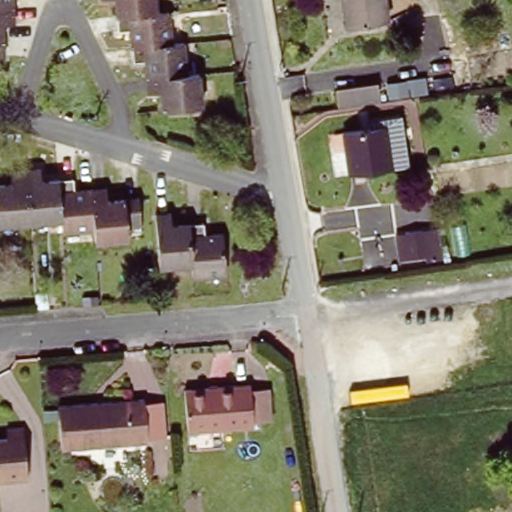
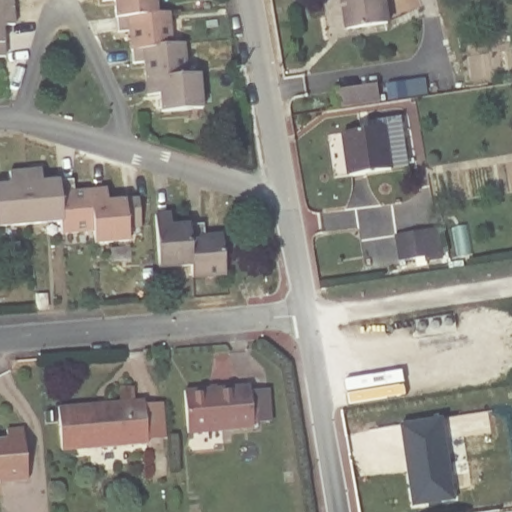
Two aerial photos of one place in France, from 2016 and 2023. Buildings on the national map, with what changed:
unchanged [(18,22),(7,22),(8,53),(0,54),(0,0),(18,0),(18,22)]
unchanged [(157,10),(167,9),(171,41),(182,40),(186,72),(197,71),(201,105),(160,109),(157,90),(144,89),(141,59),(127,59),(125,30),(115,28),(112,0),(156,0),(157,10)]
unchanged [(382,26),(345,30),(340,0),(378,0),(382,26)]
unchanged [(376,84),(379,99),(340,105),(338,89),(376,84)]
unchanged [(382,130),(390,170),(346,175),(341,135),(382,130)]
unchanged [(72,195),(103,194),(106,202),(136,203),(138,228),(121,229),(121,243),(96,244),(95,232),(60,232),(60,224),(0,225),(0,189),(6,188),(6,172),(40,172),(41,183),(70,182),(72,195)]
unchanged [(205,229),(206,242),(223,242),(226,281),(195,282),(193,272),(160,273),(156,221),(171,220),(172,232),(205,229)]
unchanged [(426,229),(428,252),(411,254),(400,256),(397,232),(409,231),(426,229)]
unchanged [(250,388),(255,431),(191,435),(188,395),(250,388)]
unchanged [(145,406),(148,447),(63,454),(60,414),(145,406)]
new [(414,506),(400,423),(442,415),(456,499),(414,506)]
unchanged [(13,432),(31,431),(33,480),(5,482),(0,482),(0,443),(12,442),(13,432)]

